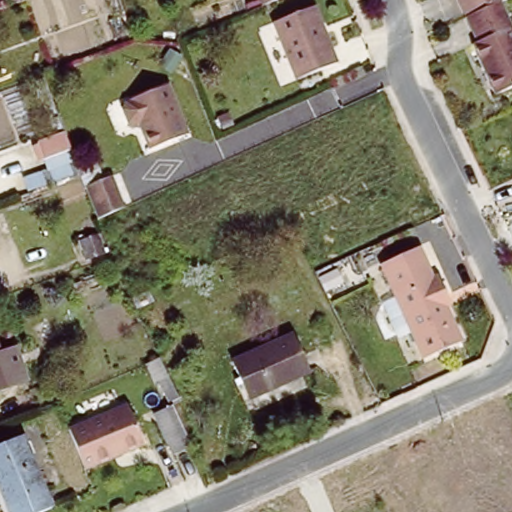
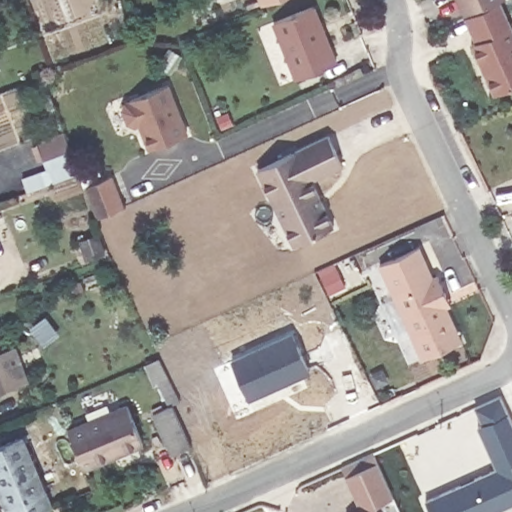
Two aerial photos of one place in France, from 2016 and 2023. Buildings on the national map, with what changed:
unchanged [(274,0),(262,5),(260,0),(274,0)]
unchanged [(465,16),(457,0),(500,0),(498,1),(465,16)]
unchanged [(512,33),(512,83),(491,93),(469,45),(474,42),(462,17),(465,16),(498,1),(512,33)]
unchanged [(337,63),(297,79),(275,23),(315,7),(337,63)]
unchanged [(188,133),(150,147),(144,131),(147,131),(143,121),(136,124),(129,120),(125,110),(128,102),(133,100),(131,96),(170,83),(188,133)]
unchanged [(71,148),(43,158),(37,141),(64,131),(71,148)]
new [(327,134),(341,163),(305,181),(328,228),(294,245),(256,169),(327,134)]
unchanged [(89,184),(115,175),(126,206),(101,218),(89,184)]
unchanged [(424,358),(382,264),(419,247),(433,278),(439,275),(448,294),(452,304),(446,306),(461,341),(424,358)]
unchanged [(306,375),(248,401),(231,363),(290,337),(306,375)]
unchanged [(14,355),(25,386),(0,395),(0,359),(14,355)]
unchanged [(173,454),(159,422),(152,407),(167,401),(157,377),(168,373),(181,399),(172,404),(177,414),(192,446),(173,454)]
new [(425,500),(497,468),(478,427),(483,424),(476,406),(501,395),(512,420),(512,505),(496,512),(430,512),(425,500)]
unchanged [(145,443),(88,468),(84,458),(72,431),(129,406),(140,432),(145,443)]
unchanged [(0,495),(0,450),(26,439),(43,479),(1,497),(0,495)]
new [(363,511),(342,466),(374,451),(394,496),(375,505),(378,512),(359,512),(363,511)]
unchanged [(55,510),(49,512),(7,512),(1,497),(43,479),(55,510)]

